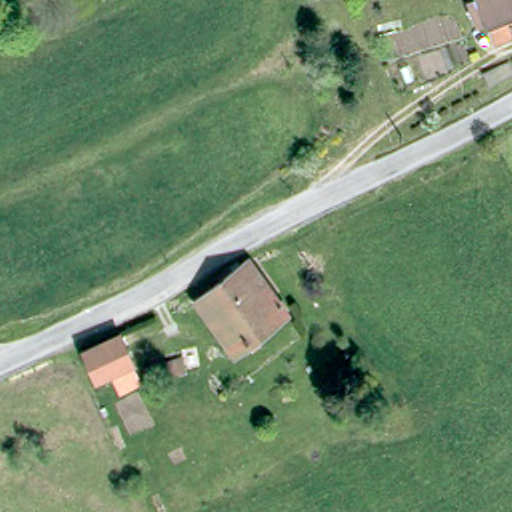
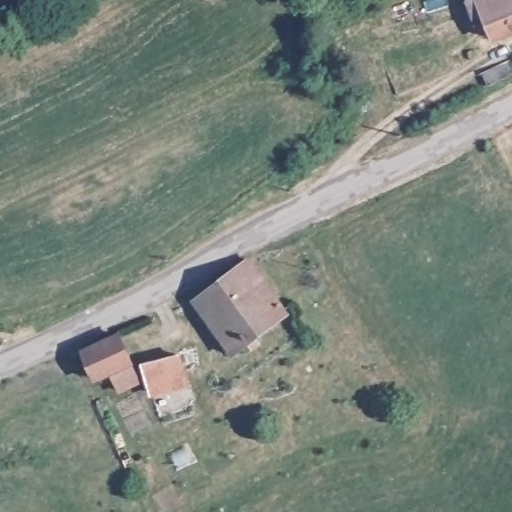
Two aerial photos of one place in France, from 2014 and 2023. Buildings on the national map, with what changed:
unchanged [(491,23),(478,29),(467,6),(479,1),(479,0),(512,0),(512,32),(498,39),(491,23)]
unchanged [(473,91),(499,78),(508,92),(479,107),(473,91)]
unchanged [(194,305),(248,267),(289,321),(238,361),(194,305)]
unchanged [(120,346),(130,369),(103,382),(95,385),(85,363),(120,346)]
new [(141,365),(181,354),(191,388),(151,397),(141,365)]
unchanged [(119,394),(113,377),(130,369),(138,385),(119,394)]

